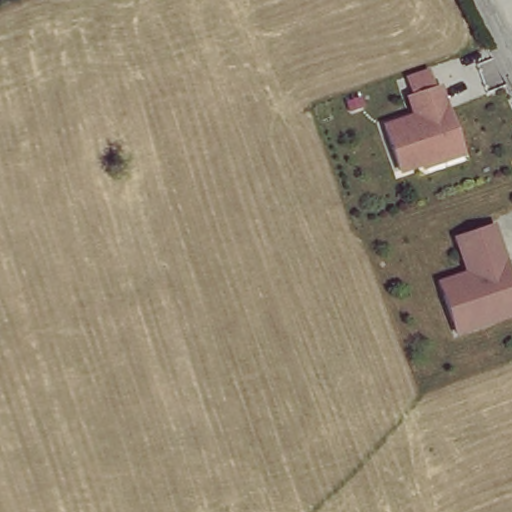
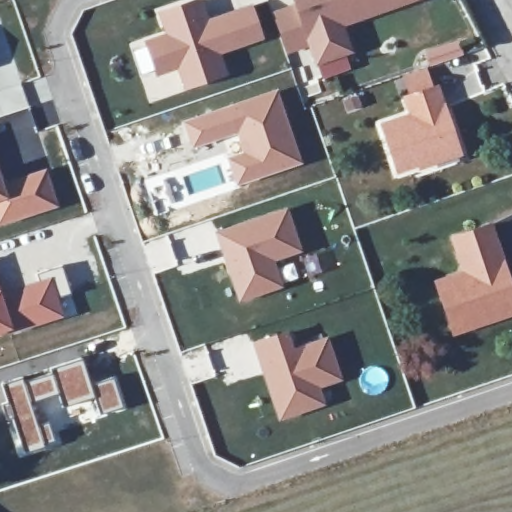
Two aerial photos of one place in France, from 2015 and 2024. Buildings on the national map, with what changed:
new [(156,11),(187,0),(202,0),(209,17),(233,9),(253,2),(265,40),(222,52),(230,76),(183,92),(176,71),(155,79),(142,40),(163,31),(156,11)]
new [(253,2),(233,9),(230,0),(255,0),(255,2),(253,2)]
new [(336,23),(345,50),(313,61),(291,0),(346,0),(353,17),(336,23)]
new [(346,0),(401,0),(353,17),(346,0)]
new [(30,108),(0,117),(0,65),(14,61),(30,108)]
unchanged [(397,168),(382,122),(412,112),(405,95),(436,85),(455,142),(459,151),(420,164),(419,161),(397,168)]
new [(277,87),(303,164),(236,187),(225,156),(239,151),(235,136),(191,149),(181,120),(277,87)]
new [(4,181),(46,166),(59,207),(0,226),(0,200),(9,197),(4,181)]
new [(9,197),(0,200),(0,170),(4,181),(9,197)]
new [(288,205),(303,252),(276,261),(285,287),(239,305),(213,230),(288,205)]
unchanged [(457,321),(444,282),(479,269),(477,263),(470,266),(459,237),(495,224),(509,260),(512,269),(512,313),(495,320),(462,332),(457,321)]
new [(168,235),(178,265),(152,275),(142,243),(168,235)]
new [(53,275),(64,316),(18,327),(17,327),(12,319),(18,317),(9,291),(53,275)]
new [(17,327),(0,332),(0,285),(12,319),(17,327)]
new [(288,327),(295,345),(328,335),(343,381),(321,387),(326,405),(278,423),(250,341),(288,327)]
new [(82,356),(91,383),(114,375),(126,410),(74,430),(49,371),(46,368),(82,356)]
new [(23,376),(25,378),(49,371),(74,430),(61,434),(65,442),(26,457),(1,403),(7,401),(0,383),(23,376)]

